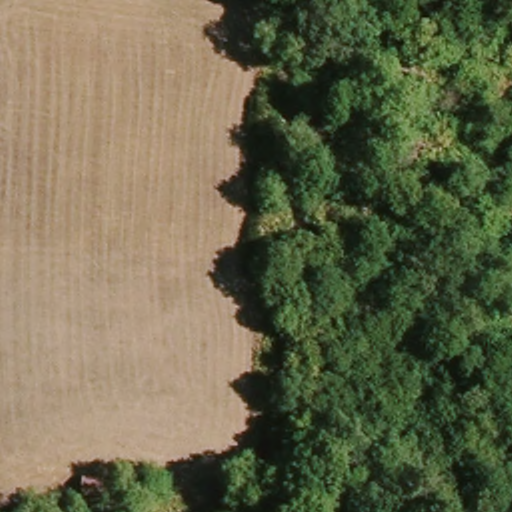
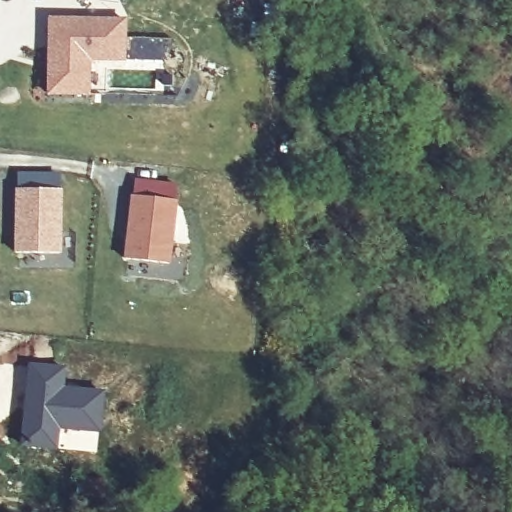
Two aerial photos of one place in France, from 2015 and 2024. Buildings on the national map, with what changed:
new [(90,96),(47,96),(47,16),(127,18),(125,61),(90,61),(90,96)]
new [(62,254),(15,252),(15,188),(62,189),(62,254)]
new [(176,201),(170,264),(123,260),(121,204),(130,196),(176,201)]
new [(58,451),(18,446),(26,361),(67,366),(64,385),(106,390),(100,433),(95,455),(58,451)]

